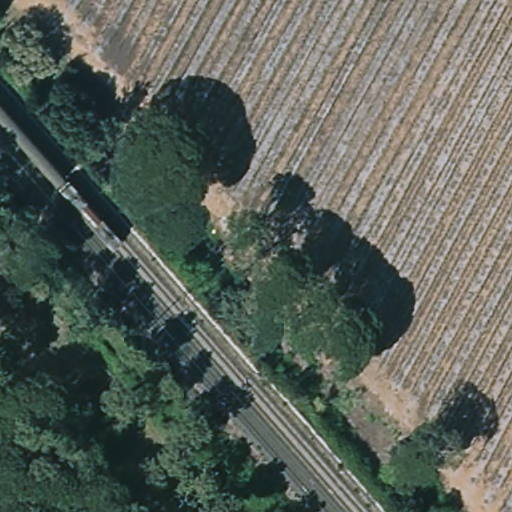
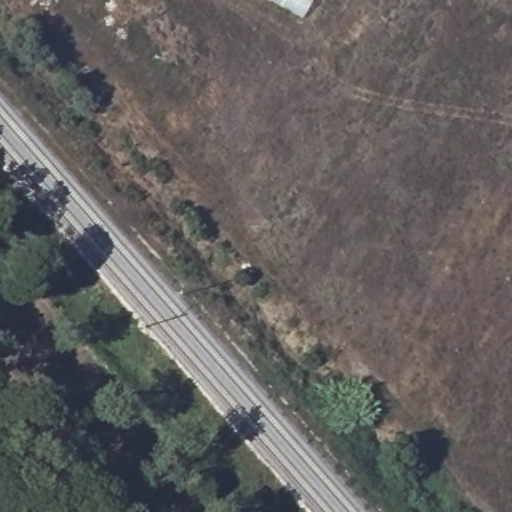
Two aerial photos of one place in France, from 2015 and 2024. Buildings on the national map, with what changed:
new [(307,0),(299,14),(271,0),(307,0)]

